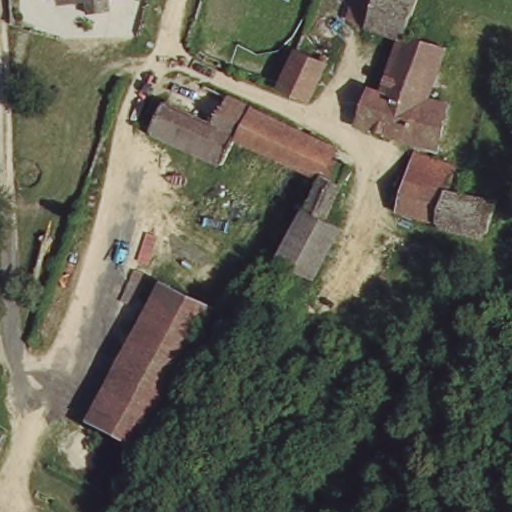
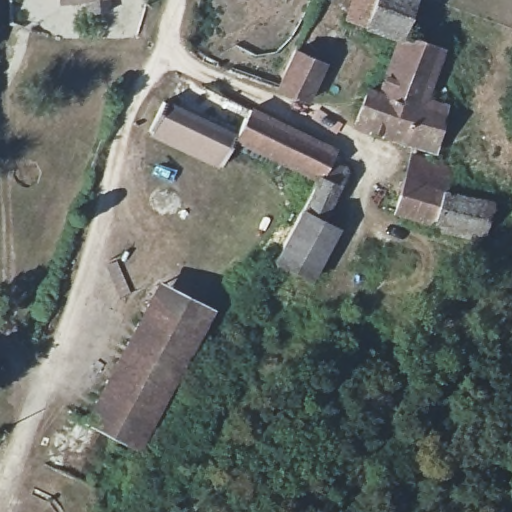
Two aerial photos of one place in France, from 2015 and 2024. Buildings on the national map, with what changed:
unchanged [(61,0),(85,0),(62,4),(61,0)]
unchanged [(346,0),(415,0),(402,38),(398,36),(341,17),(346,0)]
unchanged [(402,38),(443,51),(424,104),(451,112),(439,151),(358,126),(371,87),(380,89),(398,36),(402,38)]
unchanged [(327,59),(310,104),(280,92),(294,52),(296,47),(327,59)]
unchanged [(270,264),(317,181),(231,139),(218,165),(148,132),(177,72),(334,155),(330,167),(344,175),(319,222),(333,229),(306,281),(270,264)]
unchanged [(440,228),(433,227),(395,207),(411,155),(433,162),(461,171),(456,186),(500,200),(482,237),(440,228)]
unchanged [(159,283),(212,310),(140,446),(86,421),(159,283)]
unchanged [(0,463),(0,433),(12,437),(0,463)]

